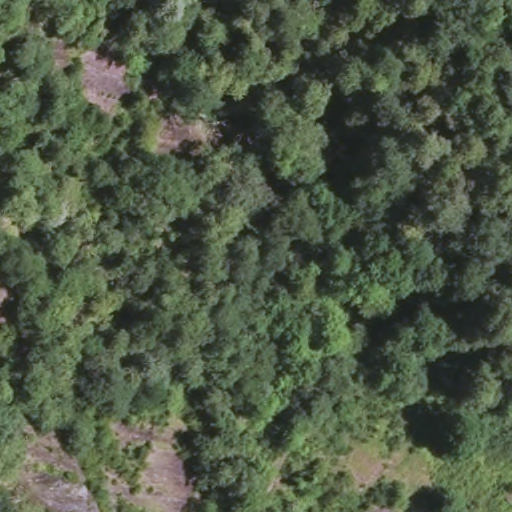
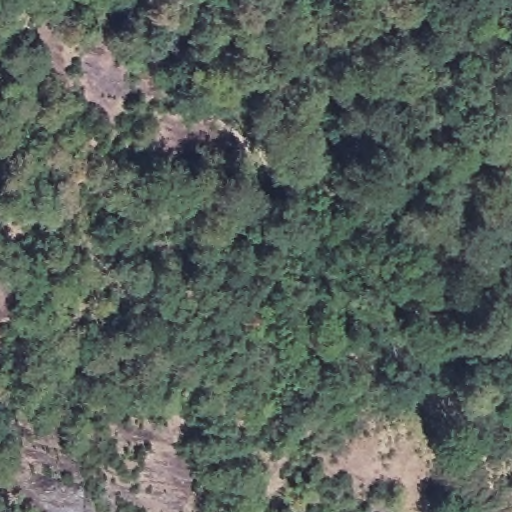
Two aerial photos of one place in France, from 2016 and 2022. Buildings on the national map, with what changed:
[]

